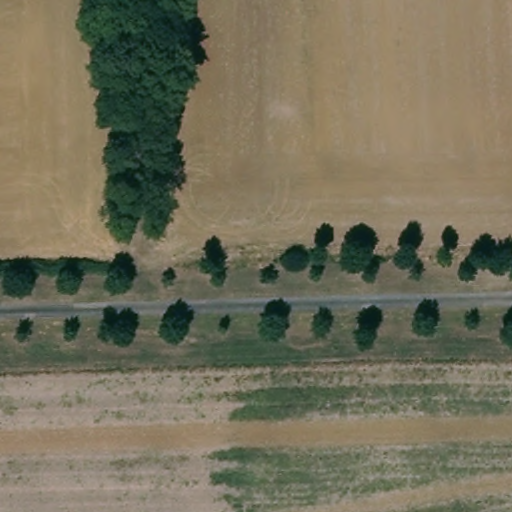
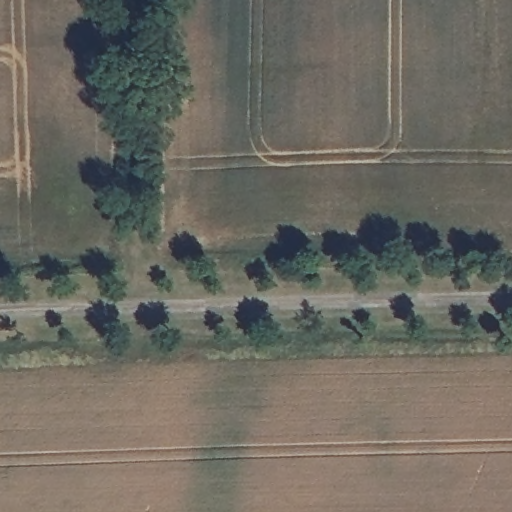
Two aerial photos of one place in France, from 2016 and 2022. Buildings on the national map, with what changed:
[]

